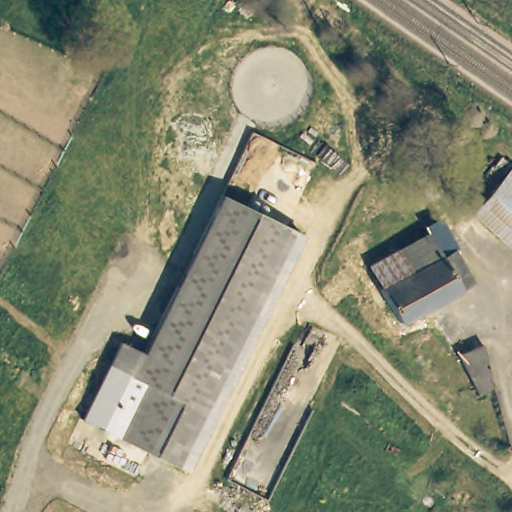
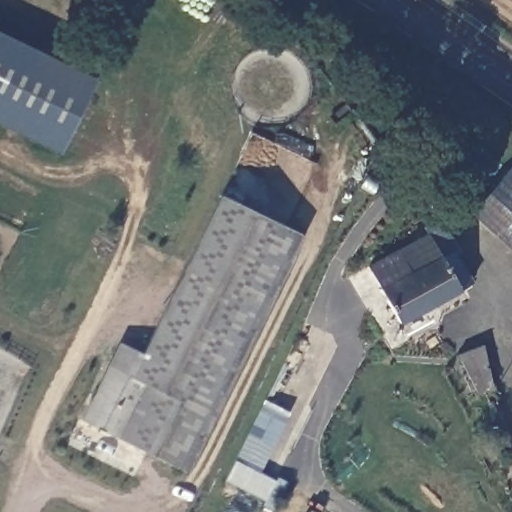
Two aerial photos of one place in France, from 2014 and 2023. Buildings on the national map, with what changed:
new [(95,79),(57,153),(0,125),(0,32),(95,79)]
unchanged [(506,166),(512,171),(512,238),(473,207),(506,166)]
unchanged [(221,195),(281,225),(167,464),(103,432),(144,350),(221,195)]
unchanged [(281,225),(304,235),(186,473),(167,464),(281,225)]
unchanged [(438,257),(451,249),(469,284),(463,287),(397,321),(379,286),(369,266),(396,249),(422,233),(438,257)]
unchanged [(103,432),(79,419),(122,339),(144,350),(103,432)]
unchanged [(490,384),(476,390),(469,375),(458,352),(477,343),(490,384)]
new [(234,461),(262,400),(289,412),(260,473),(234,461)]
unchanged [(274,480),(275,477),(286,482),(272,510),(260,503),(263,499),(224,481),(234,461),(274,480)]

